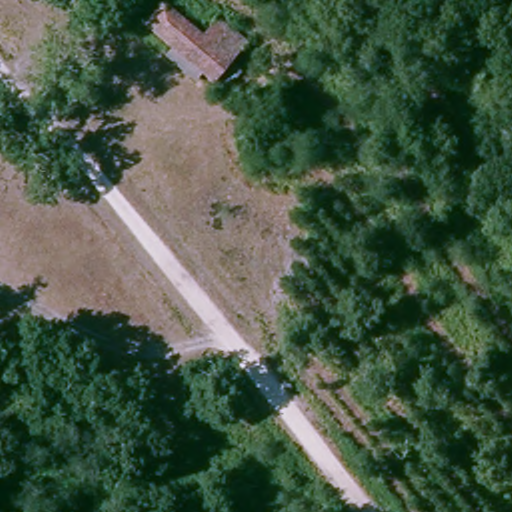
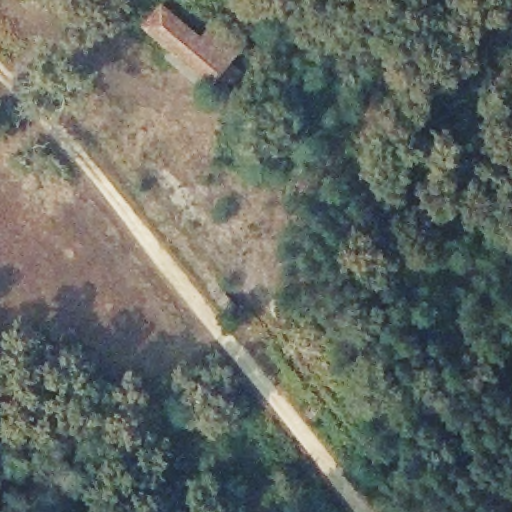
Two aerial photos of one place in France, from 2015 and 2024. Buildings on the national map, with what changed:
unchanged [(207,30),(225,12),(257,49),(208,93),(153,36),(184,6),(207,30)]

